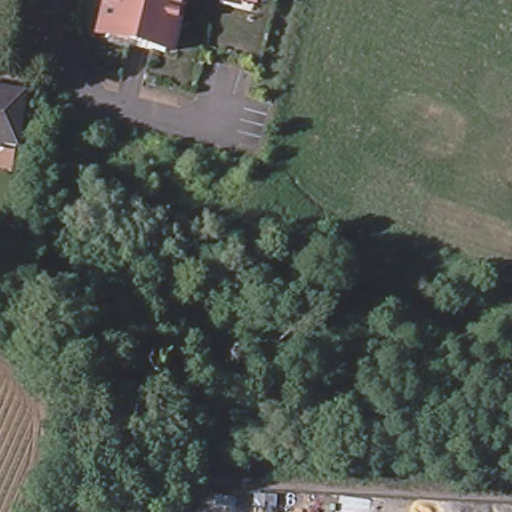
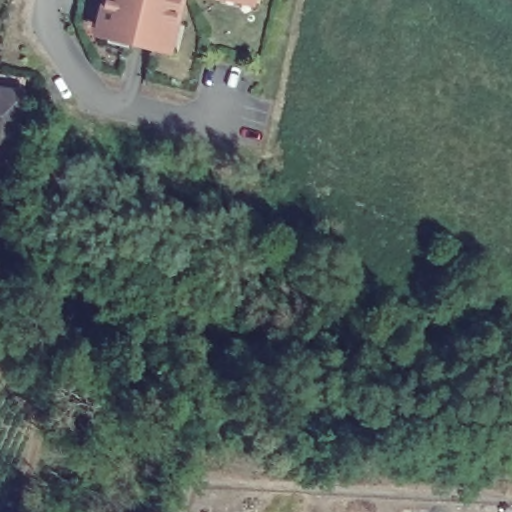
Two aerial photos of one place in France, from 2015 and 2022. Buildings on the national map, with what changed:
unchanged [(106,41),(109,30),(97,27),(104,0),(182,0),(176,23),(182,25),(177,45),(166,42),(163,50),(129,42),(128,47),(106,41)]
unchanged [(241,6),(220,0),(243,0),(241,6)]
unchanged [(0,86),(21,89),(20,94),(14,145),(0,143),(0,86)]

